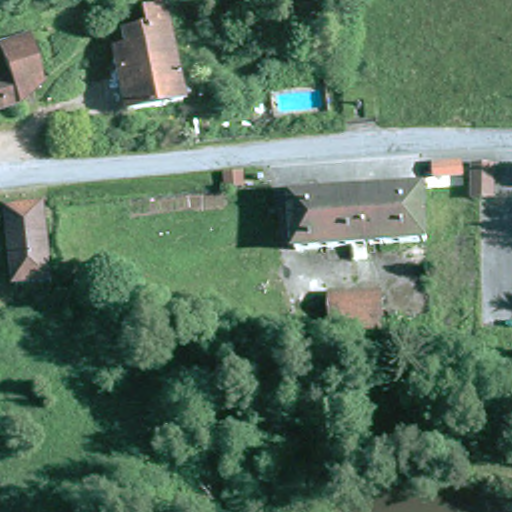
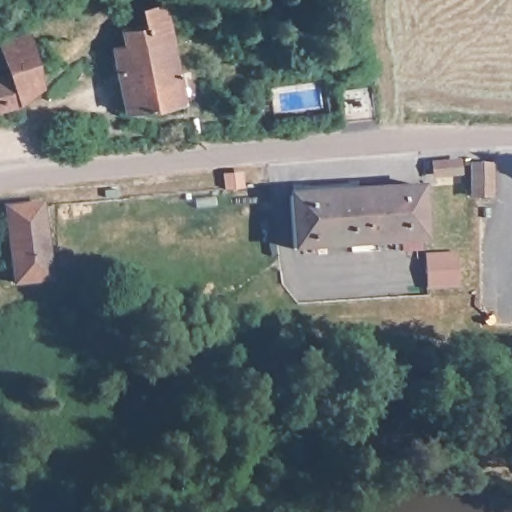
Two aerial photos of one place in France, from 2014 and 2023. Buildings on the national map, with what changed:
unchanged [(144,10),(150,6),(170,4),(187,104),(127,110),(119,41),(132,39),(130,25),(145,23),(144,10)]
unchanged [(2,70),(0,66),(0,39),(22,30),(42,79),(0,98),(0,71),(2,70)]
unchanged [(464,195),(462,164),(490,163),(490,194),(464,195)]
unchanged [(400,253),(399,238),(292,241),(290,186),(422,184),(423,238),(423,252),(400,253)]
unchanged [(7,279),(6,262),(2,208),(41,205),(46,258),(48,279),(7,279)]
new [(455,256),(456,288),(425,289),(422,258),(455,256)]
unchanged [(375,320),(372,320),(372,334),(332,333),(332,321),(326,321),(327,298),(375,298),(375,320)]

